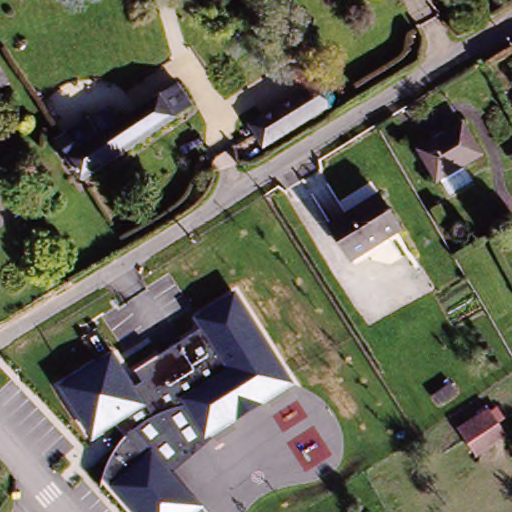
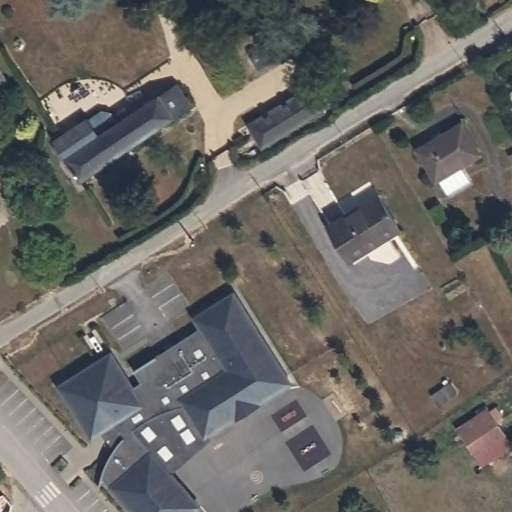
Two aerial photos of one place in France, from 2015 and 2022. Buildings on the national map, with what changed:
unchanged [(0,61),(14,84),(0,92),(0,61)]
unchanged [(94,127),(104,141),(192,83),(205,104),(83,184),(70,164),(59,149),(94,127)]
unchanged [(318,84),(337,113),(264,151),(252,121),(318,84)]
unchanged [(440,174),(422,144),(467,119),(484,149),(465,160),(471,171),(450,183),(444,171),(440,174)]
unchanged [(355,258),(334,223),(382,195),(403,230),(355,258)]
unchanged [(296,383),(215,435),(175,471),(207,507),(201,512),(129,512),(100,479),(113,447),(102,432),(92,438),(58,387),(112,351),(135,387),(142,382),(135,370),(200,329),(195,317),(235,290),(296,383)]
unchanged [(463,443),(455,428),(487,409),(489,412),(496,408),(503,420),(497,424),(504,437),(470,456),(463,443)]

